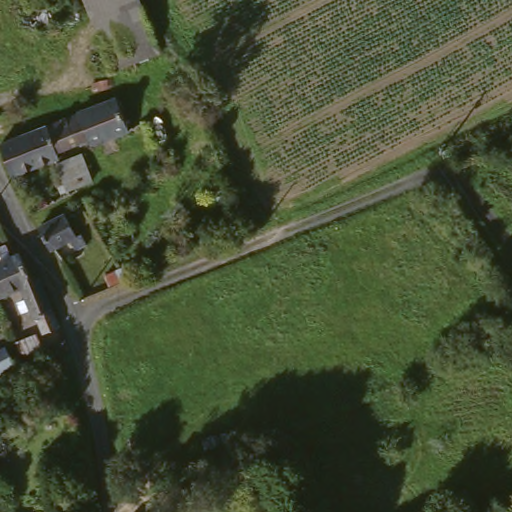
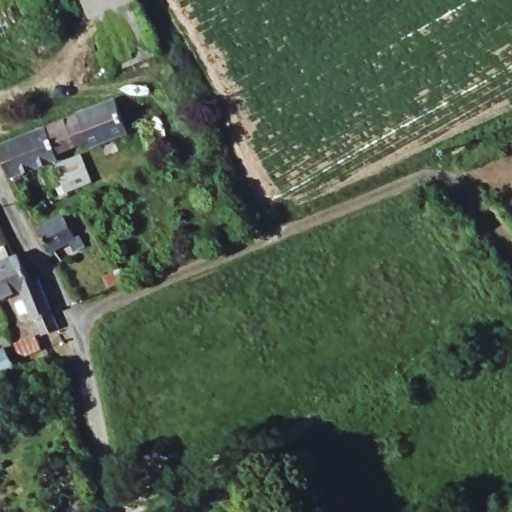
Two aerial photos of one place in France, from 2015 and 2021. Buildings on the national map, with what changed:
unchanged [(140,0),(161,59),(114,74),(86,0),(140,0)]
unchanged [(110,103),(114,110),(128,105),(135,125),(142,130),(151,153),(138,157),(131,144),(121,148),(116,139),(88,149),(81,136),(73,117),(110,103)]
unchanged [(4,141),(25,135),(73,117),(81,136),(53,146),(57,156),(11,174),(0,145),(0,144),(4,141)]
unchanged [(70,180),(79,198),(64,204),(59,195),(67,191),(64,183),(70,180)]
unchanged [(48,247),(39,229),(66,218),(76,238),(50,249),(48,247)]
unchanged [(4,249),(9,259),(18,255),(22,255),(25,262),(35,258),(40,272),(35,274),(52,319),(41,324),(39,316),(31,319),(17,290),(0,297),(0,251),(4,249)]
unchanged [(22,336),(25,346),(15,349),(9,352),(5,342),(22,336)]
unchanged [(8,355),(14,372),(0,380),(0,358),(8,355)]

